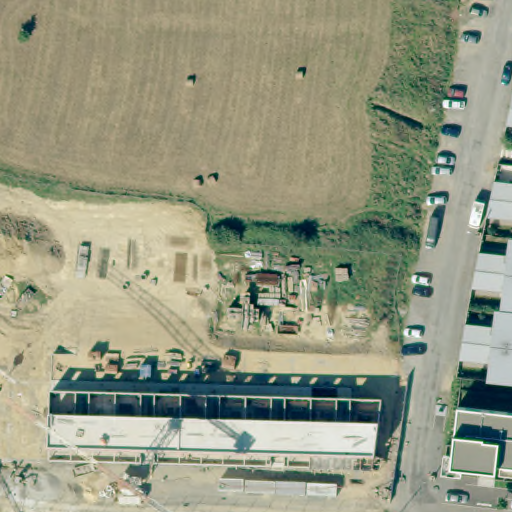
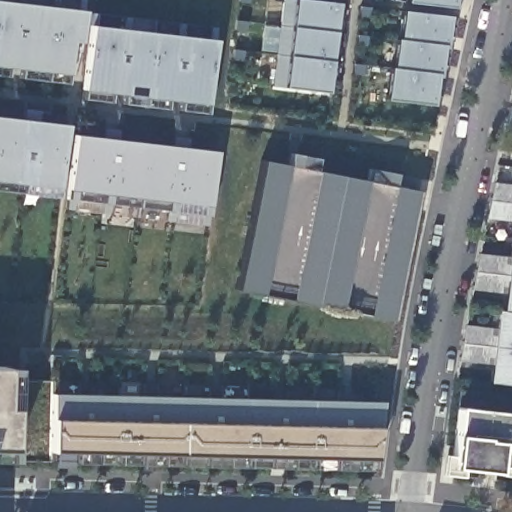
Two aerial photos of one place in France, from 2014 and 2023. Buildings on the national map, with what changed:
new [(283,87),(271,85),(282,0),(307,0),(338,3),(326,92),(283,87)]
new [(405,0),(453,0),(452,6),(405,1),(405,0)]
new [(83,10),(80,43),(72,42),(67,75),(0,67),(0,1),(83,10)]
new [(388,66),(390,67),(394,38),(398,38),(401,10),(449,16),(444,46),(443,45),(439,73),(435,72),(431,104),(384,98),(388,66)]
new [(214,40),(208,104),(83,91),(90,26),(214,40)]
unchanged [(512,100),(512,129),(505,128),(512,100)]
new [(67,125),(58,197),(0,190),(0,117),(67,125)]
unchanged [(218,148),(210,207),(208,216),(64,200),(67,190),(74,130),(218,148)]
new [(286,166),(289,153),(319,160),(316,172),(364,181),(368,167),(396,173),(393,185),(420,191),(394,322),(236,291),(259,160),(286,166)]
unchanged [(492,185),(512,188),(512,222),(485,220),(492,185)]
unchanged [(487,367),(459,363),(466,328),(491,330),(493,310),(498,310),(500,295),(471,292),(479,252),(505,256),(507,238),(512,239),(512,387),(485,384),(487,367)]
new [(0,368),(10,368),(9,409),(7,449),(8,461),(0,461),(0,368)]
unchanged [(381,403),(379,426),(376,459),(53,449),(53,418),(52,393),(381,403)]
unchanged [(457,409),(512,415),(512,470),(492,468),(492,474),(451,470),(454,437),(457,409)]

